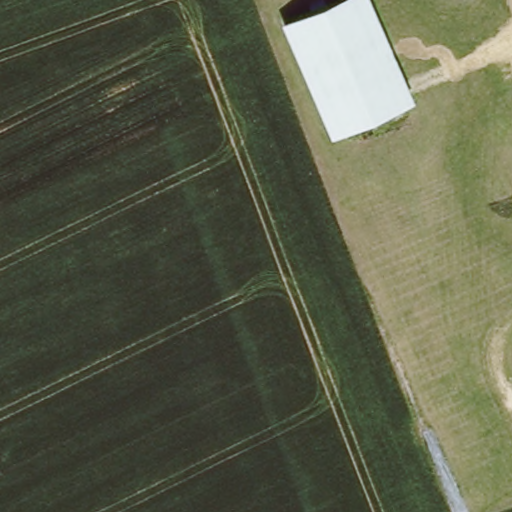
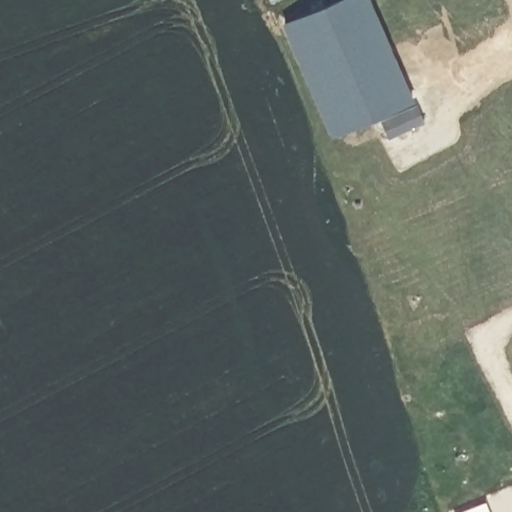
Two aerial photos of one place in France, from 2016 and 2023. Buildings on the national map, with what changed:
unchanged [(414,97),(328,137),(281,30),(344,0),(366,0),(414,97)]

